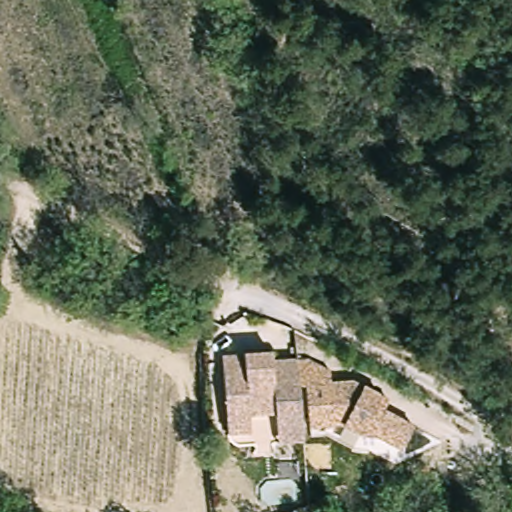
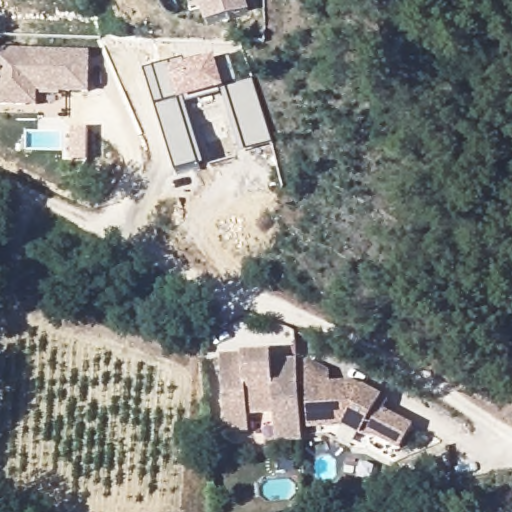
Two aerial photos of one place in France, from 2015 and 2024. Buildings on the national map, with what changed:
new [(249,11),(205,23),(201,11),(191,13),(186,0),(245,0),(249,11)]
demolished [(232,12),(233,14),(237,32),(221,36),(217,17),(232,12)]
new [(0,104),(0,50),(88,51),(87,91),(36,89),(35,104),(26,104),(0,104)]
new [(212,53),(225,87),(252,80),(271,143),(240,153),(221,90),(180,102),(183,112),(188,111),(205,166),(177,175),(148,77),(154,75),(152,70),(212,53)]
unchanged [(299,445),(273,447),(271,417),(245,419),(246,436),(223,437),(220,359),(270,357),(270,364),(295,363),(299,445)]
unchanged [(306,362),(328,374),(328,388),(350,386),(385,406),(380,416),(410,433),(397,455),(371,441),(358,440),(340,430),(305,432),(303,390),(297,390),(296,363),(306,362)]

